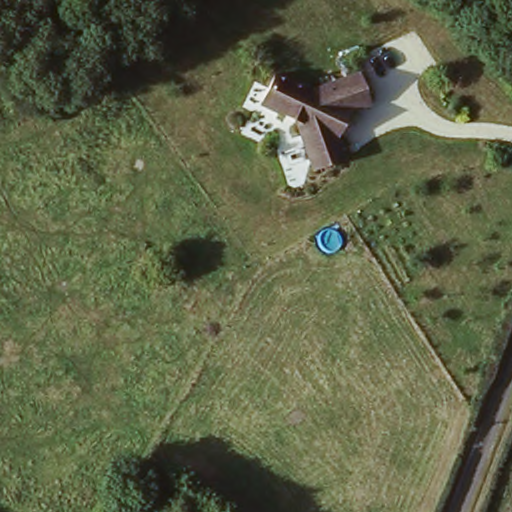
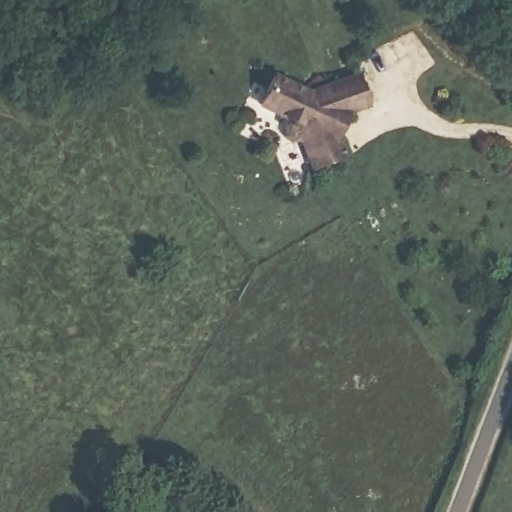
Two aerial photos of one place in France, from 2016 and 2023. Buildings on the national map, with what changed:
unchanged [(341,158),(308,169),(292,120),(257,103),(270,74),(305,92),(353,76),(365,105),(345,112),(328,140),(332,143),(336,143),(341,158)]

